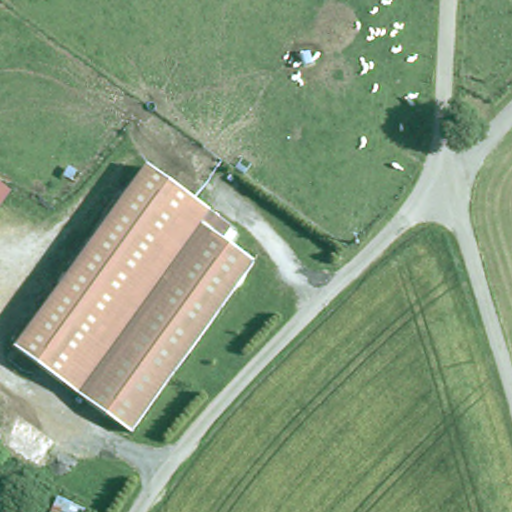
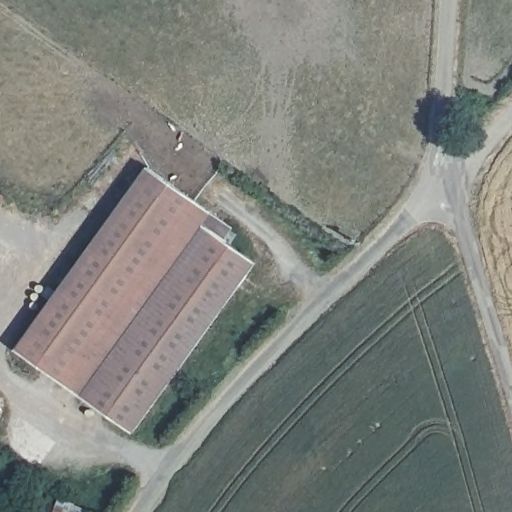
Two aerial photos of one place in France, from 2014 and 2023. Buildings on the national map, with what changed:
unchanged [(220,239),(252,261),(130,432),(78,394),(17,351),(147,167),(230,226),(220,239)]
unchanged [(4,198),(0,202),(0,195),(4,198)]
unchanged [(82,510),(81,512),(52,512),(57,500),(82,510)]

